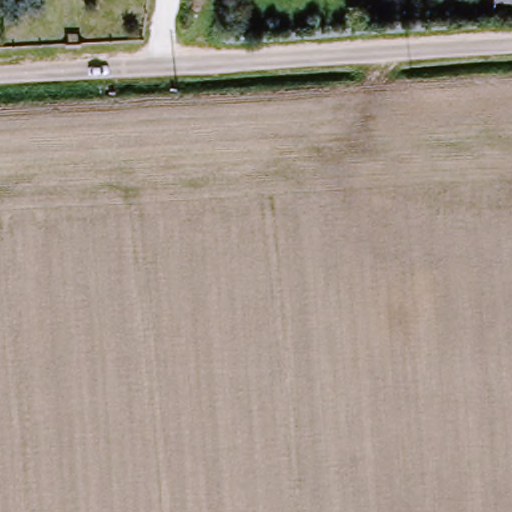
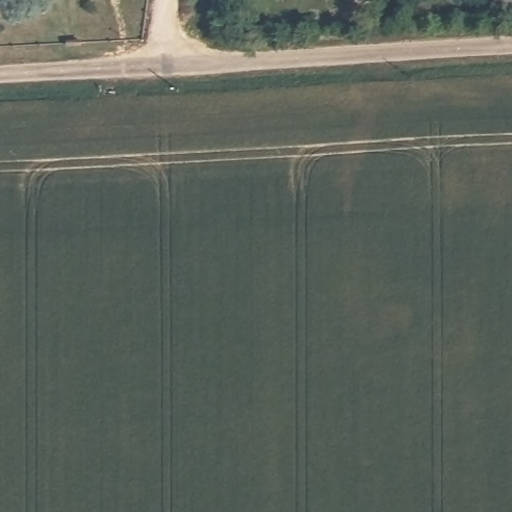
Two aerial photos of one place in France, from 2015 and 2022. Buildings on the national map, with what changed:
unchanged [(497,0),(512,0),(512,2),(497,0)]

